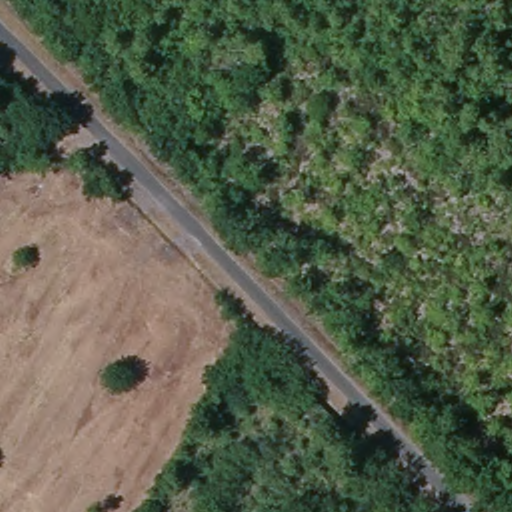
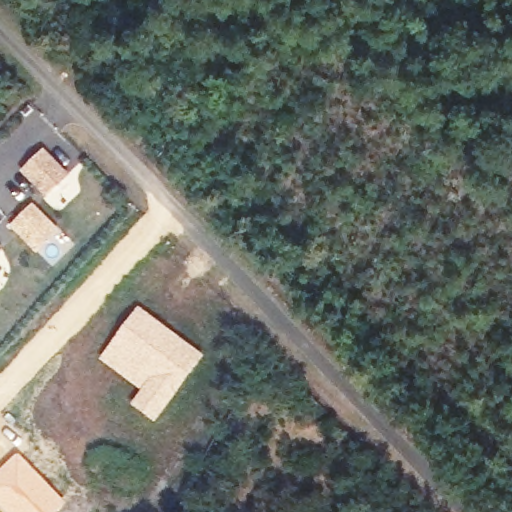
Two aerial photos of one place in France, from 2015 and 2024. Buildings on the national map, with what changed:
new [(69,179),(49,199),(24,172),(44,151),(69,179)]
new [(61,232),(38,255),(10,227),(34,204),(61,232)]
new [(0,258),(0,252),(3,255),(0,258)]
new [(142,392),(100,361),(139,309),(204,358),(154,424),(131,406),(142,392)]
new [(65,504),(57,512),(7,512),(0,504),(0,470),(18,454),(65,504)]

